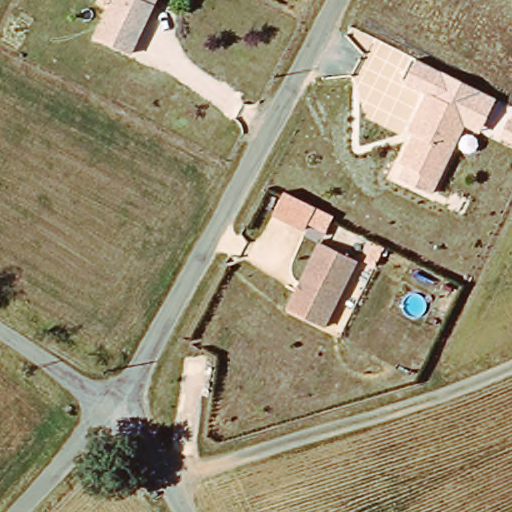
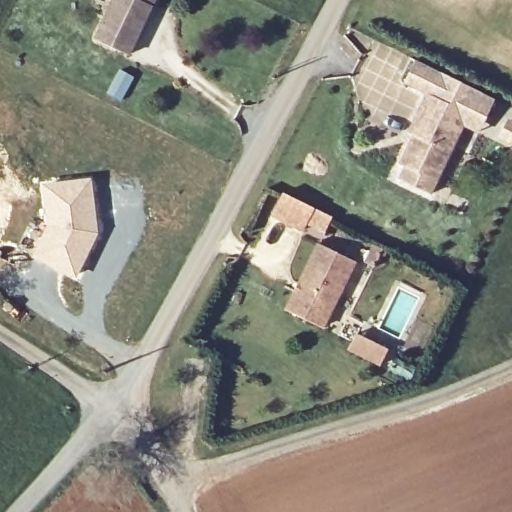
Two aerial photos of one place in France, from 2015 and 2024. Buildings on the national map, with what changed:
unchanged [(97,40),(116,0),(158,0),(131,56),(97,40)]
unchanged [(471,109),(438,179),(402,163),(416,134),(410,131),(415,119),(428,90),(471,109)]
new [(50,225),(46,185),(90,180),(97,232),(75,275),(36,254),(50,225)]
unchanged [(283,190),(315,207),(305,229),(272,213),(283,190)]
unchanged [(320,245),(355,264),(323,329),(288,312),(320,245)]

